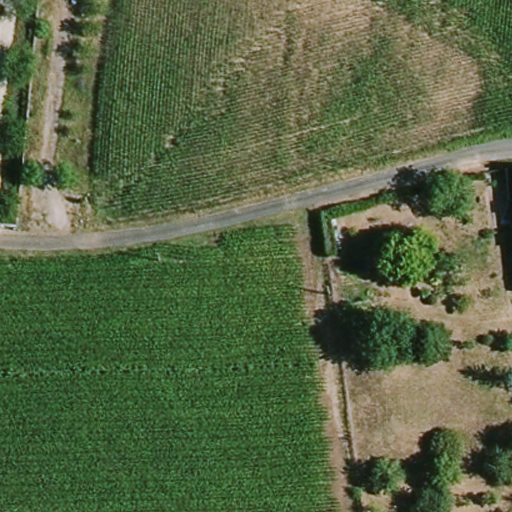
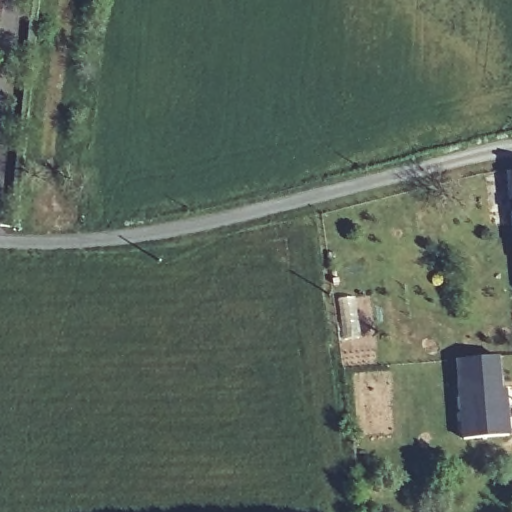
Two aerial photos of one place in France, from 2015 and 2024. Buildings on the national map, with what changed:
new [(498,357),(500,392),(505,392),(509,437),(463,440),(455,361),(498,357)]

